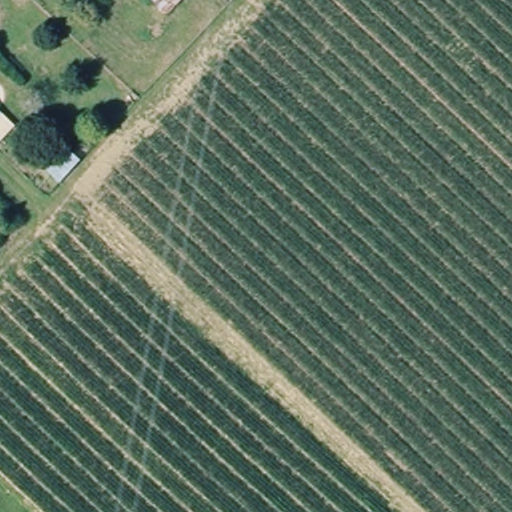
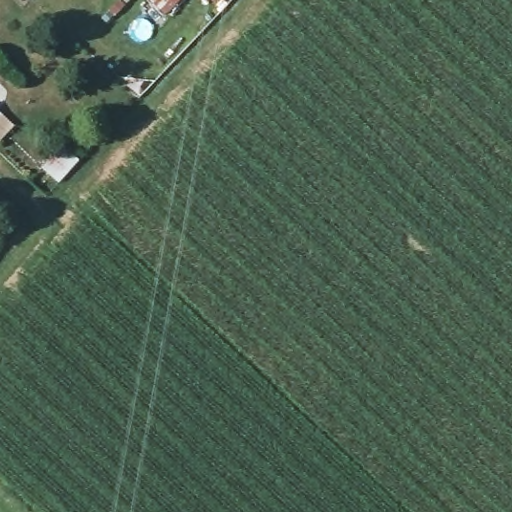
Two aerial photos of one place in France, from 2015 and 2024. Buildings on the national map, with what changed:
unchanged [(166,0),(187,0),(177,11),(166,0)]

